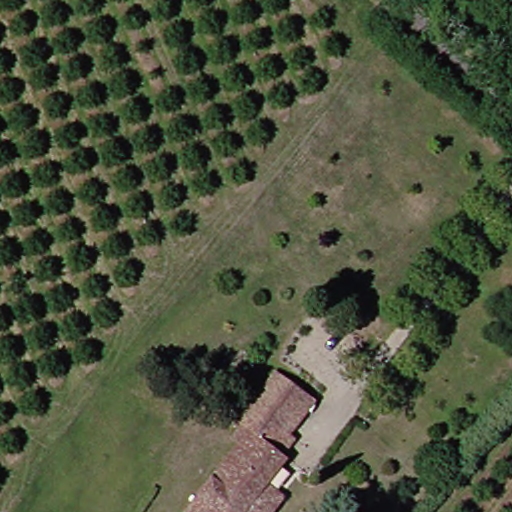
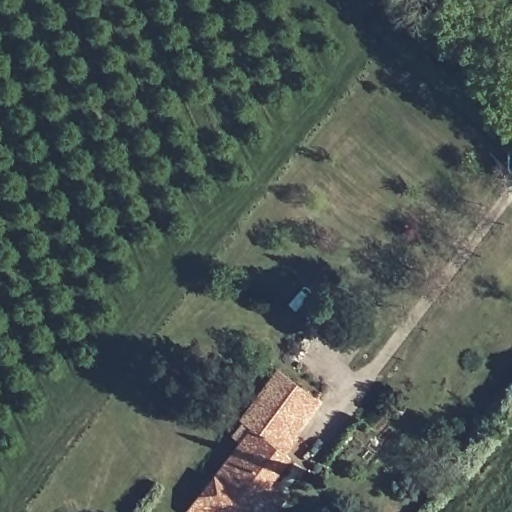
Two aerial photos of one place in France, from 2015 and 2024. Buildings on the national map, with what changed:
unchanged [(184,512),(247,430),(236,421),(277,373),(296,390),(306,399),(285,423),(297,435),(279,456),(285,461),(246,512),(184,512)]

